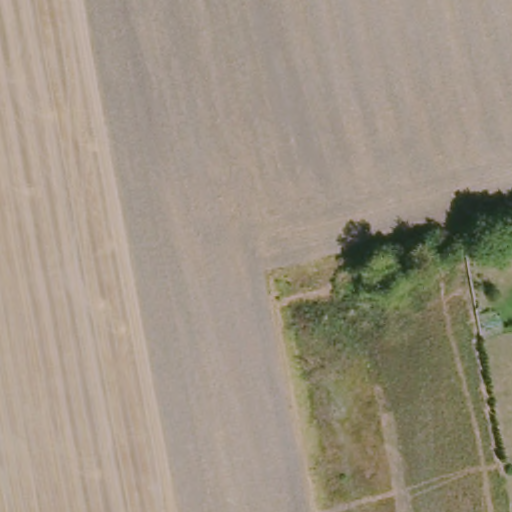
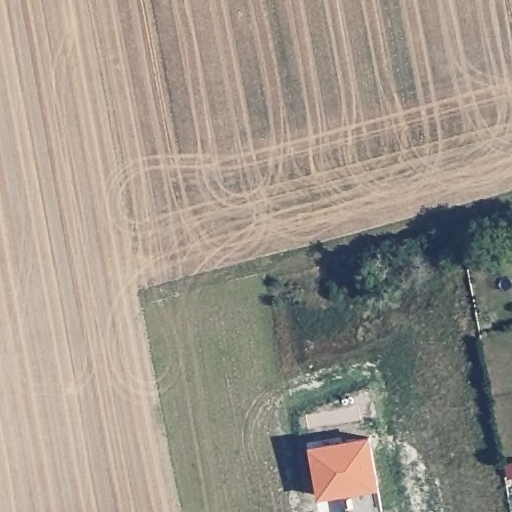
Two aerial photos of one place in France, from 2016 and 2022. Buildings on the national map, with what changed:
new [(380,492),(315,507),(308,453),(370,441),(380,492)]

